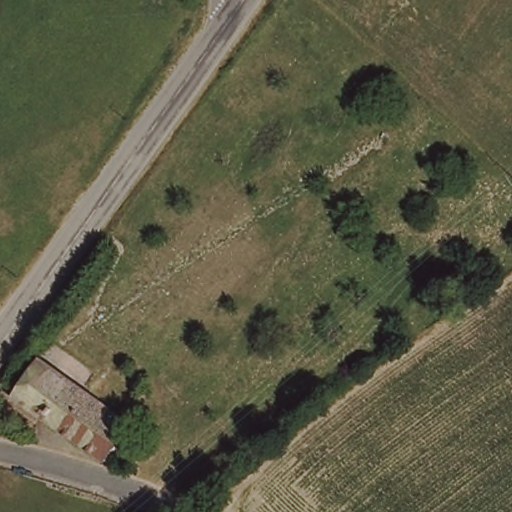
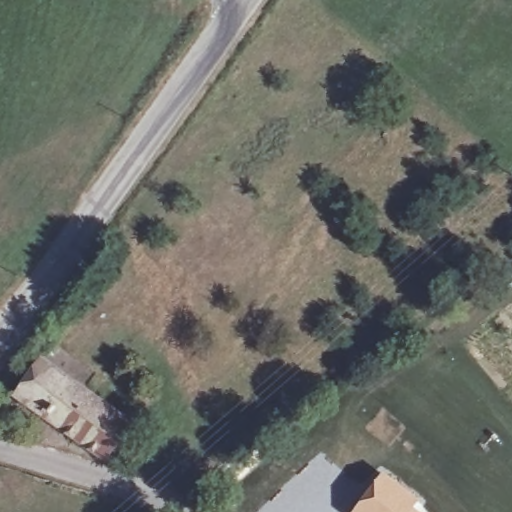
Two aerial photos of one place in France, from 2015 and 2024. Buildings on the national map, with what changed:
unchanged [(133,424),(107,461),(15,395),(41,358),(133,424)]
new [(384,472),(419,500),(415,506),(423,512),(351,512),(384,472)]

